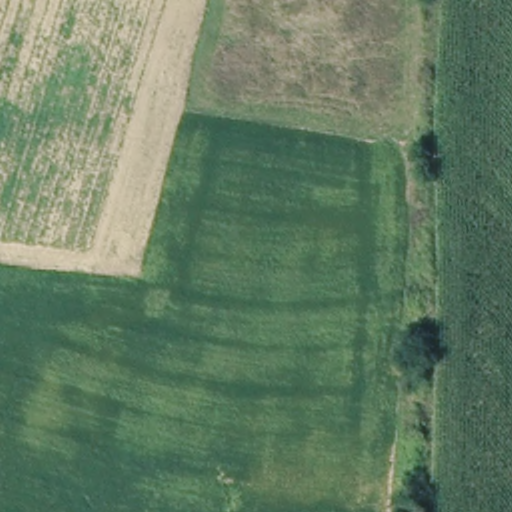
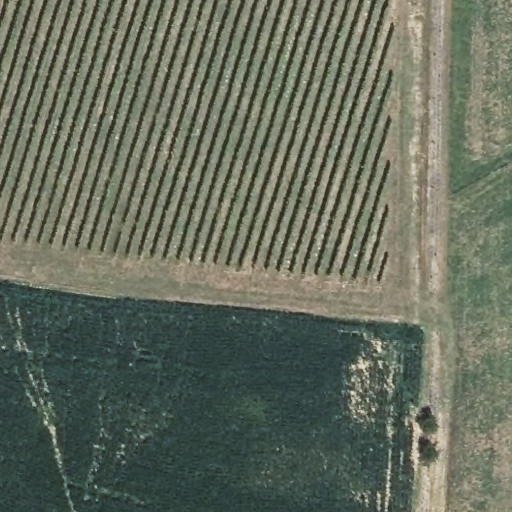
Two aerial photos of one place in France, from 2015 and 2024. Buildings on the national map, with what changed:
[]

